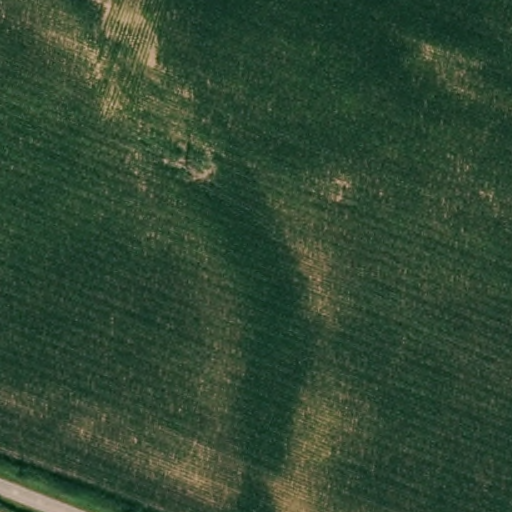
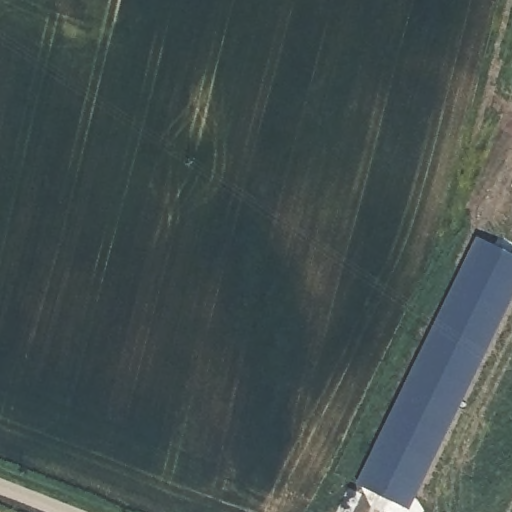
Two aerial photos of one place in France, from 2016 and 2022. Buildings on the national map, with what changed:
new [(475,236),(512,255),(512,298),(409,509),(356,483),(475,236)]

